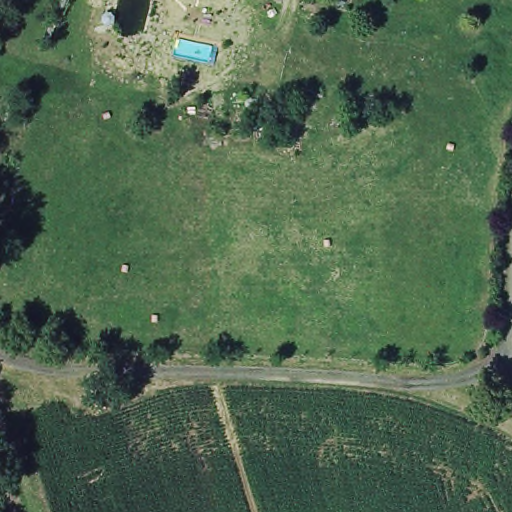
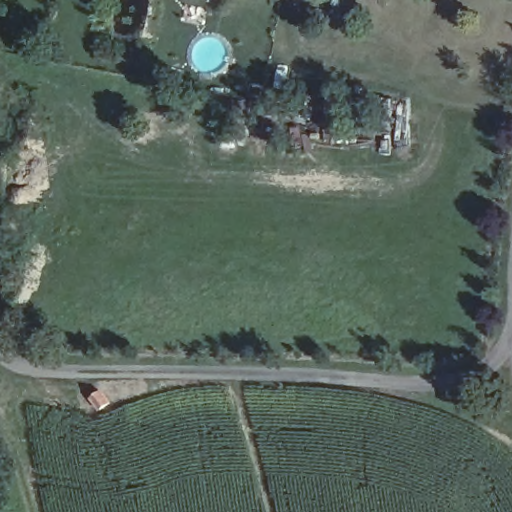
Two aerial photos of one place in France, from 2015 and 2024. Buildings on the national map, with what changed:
unchanged [(103,390),(106,391),(114,406),(103,413),(81,384),(103,390)]

